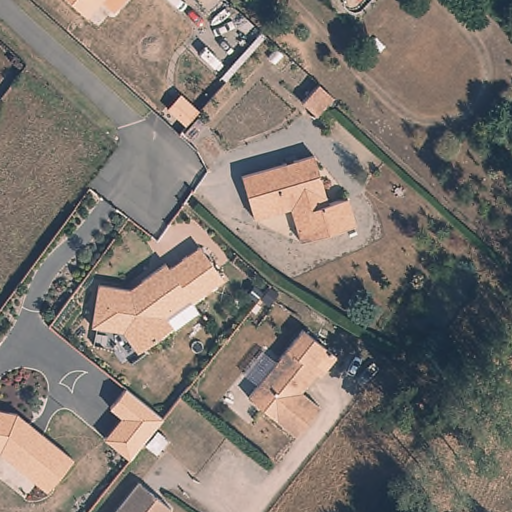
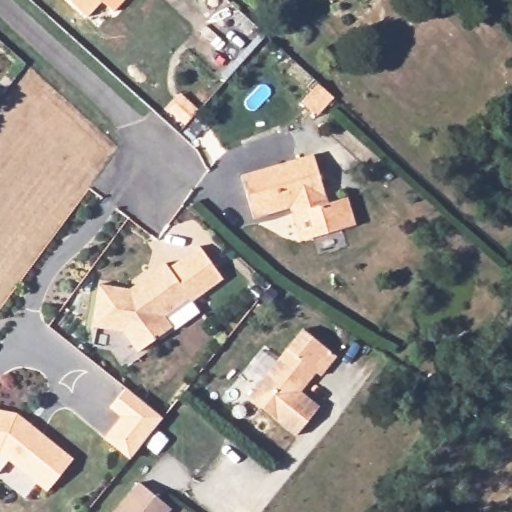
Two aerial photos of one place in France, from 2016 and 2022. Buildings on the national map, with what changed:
unchanged [(71,0),(105,0),(90,17),(71,0)]
unchanged [(105,0),(126,0),(117,10),(105,0)]
unchanged [(337,97),(319,116),(304,102),(321,84),(337,97)]
unchanged [(330,202),(351,196),(359,225),(304,240),(295,207),(257,217),(245,175),(316,154),(330,202)]
unchanged [(121,331),(90,327),(97,285),(128,290),(164,264),(168,269),(198,247),(221,280),(190,302),(188,299),(163,317),(170,327),(136,352),(121,331)]
unchanged [(337,356),(322,376),(317,372),(302,392),(320,407),(298,436),(249,398),(304,330),(337,356)]
unchanged [(166,418),(133,459),(108,438),(125,417),(113,407),(129,388),(166,418)]
unchanged [(76,460),(50,491),(2,452),(0,452),(0,410),(19,414),(76,460)]
unchanged [(142,482),(174,508),(171,512),(118,512),(142,482)]

